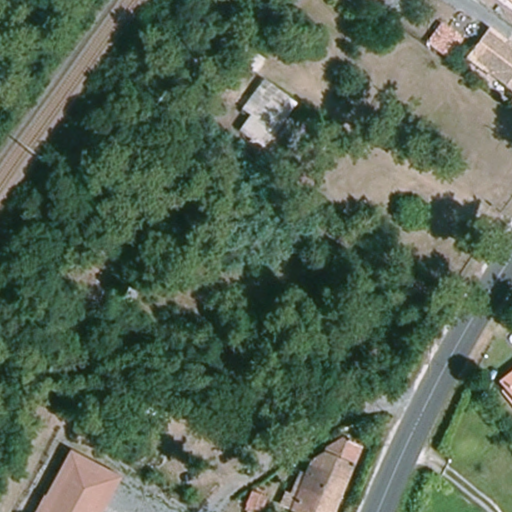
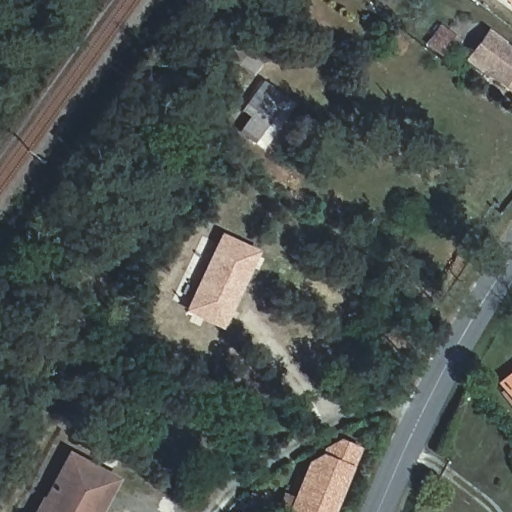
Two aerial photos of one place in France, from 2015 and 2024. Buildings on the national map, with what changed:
unchanged [(463,35),(448,56),(435,45),(450,25),(463,35)]
unchanged [(512,48),(512,91),(471,60),(492,32),(512,48)]
unchanged [(236,40),(262,60),(253,72),(227,52),(236,40)]
unchanged [(291,100),(260,144),(231,124),(261,80),(291,100)]
new [(261,251),(224,329),(184,311),(221,232),(261,251)]
unchanged [(500,381),(512,371),(512,397),(500,381)]
unchanged [(327,512),(285,512),(305,461),(336,439),(354,447),(327,512)]
unchanged [(46,493),(70,450),(119,479),(101,512),(33,512),(43,494),(46,493)]

